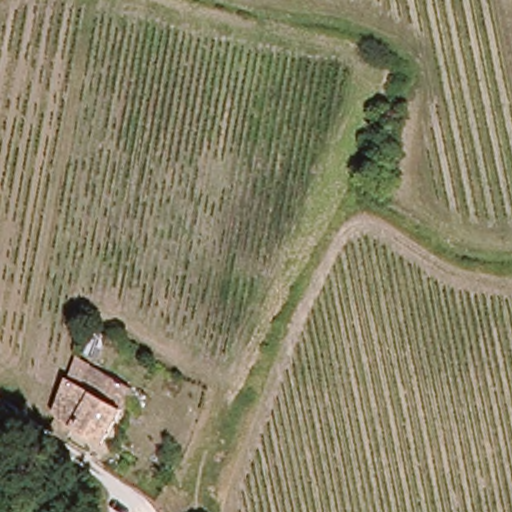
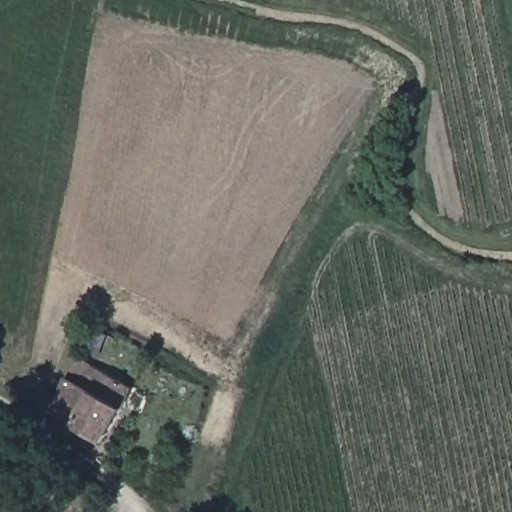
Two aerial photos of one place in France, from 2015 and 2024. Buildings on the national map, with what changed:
unchanged [(123,411),(101,442),(59,417),(69,377),(79,382),(90,365),(129,386),(123,411)]

